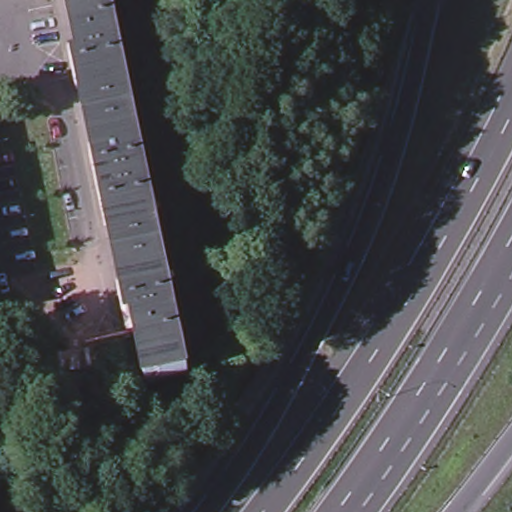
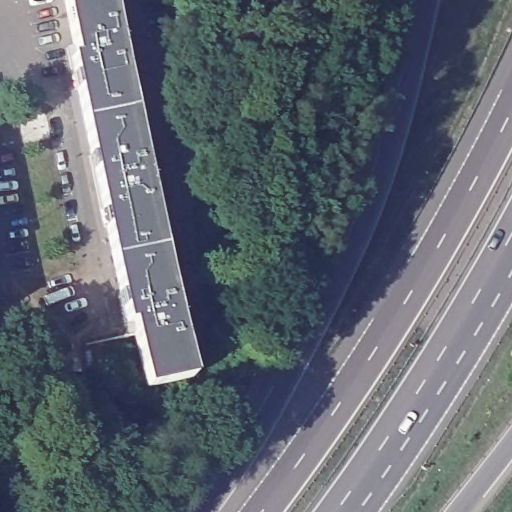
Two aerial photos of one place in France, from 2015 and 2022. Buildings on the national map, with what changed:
unchanged [(130,106),(82,115),(75,85),(68,51),(73,50),(62,0),(108,0),(130,106)]
unchanged [(159,245),(112,255),(105,223),(89,149),(82,115),(130,106),(159,245)]
unchanged [(130,317),(124,316),(117,286),(114,264),(112,255),(159,245),(185,375),(143,383),(130,317)]

